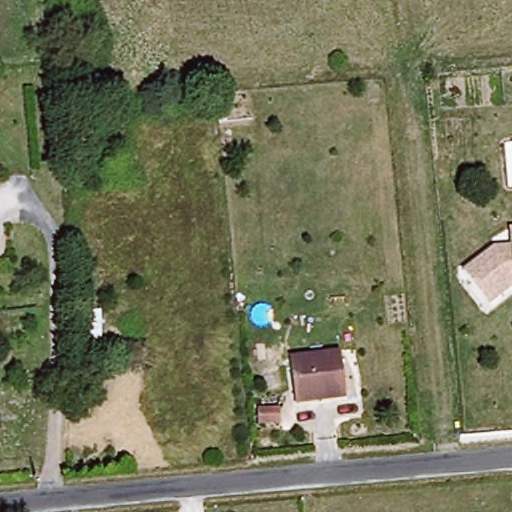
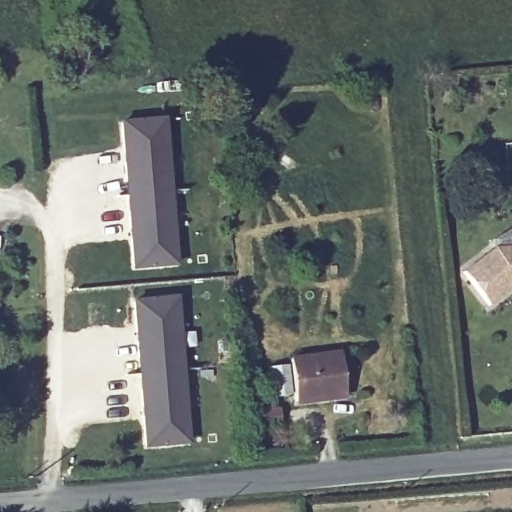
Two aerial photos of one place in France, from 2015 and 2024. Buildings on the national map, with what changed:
new [(124,124),(161,120),(175,261),(137,266),(124,124)]
unchanged [(485,304),(459,272),(487,247),(505,245),(503,229),(512,228),(512,284),(510,285),(485,304)]
new [(135,301),(176,298),(189,441),(147,446),(135,301)]
unchanged [(293,406),(287,360),(339,353),(345,398),(293,406)]

